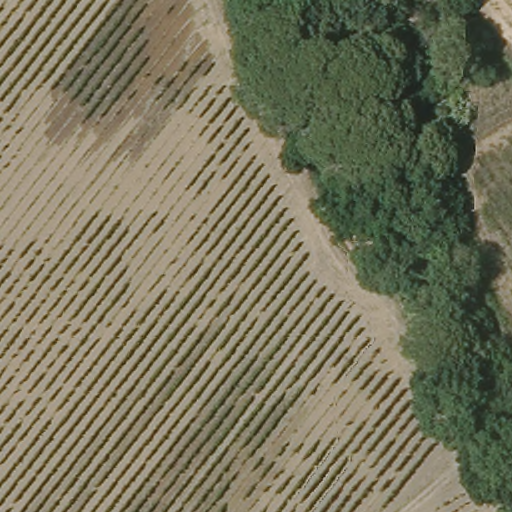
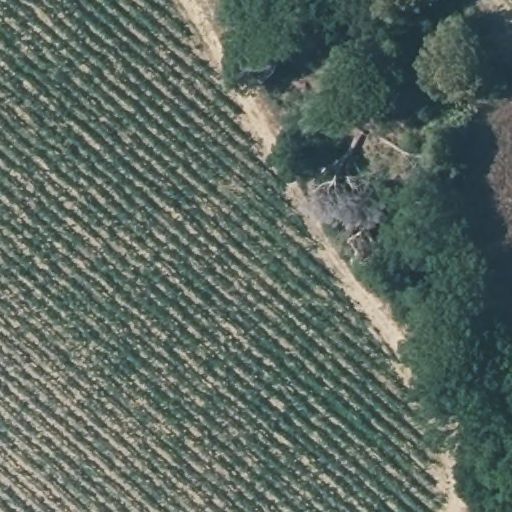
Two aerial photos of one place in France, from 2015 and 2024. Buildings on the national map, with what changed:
unchanged [(365,260),(349,234),(370,222),(386,248),(365,260)]

